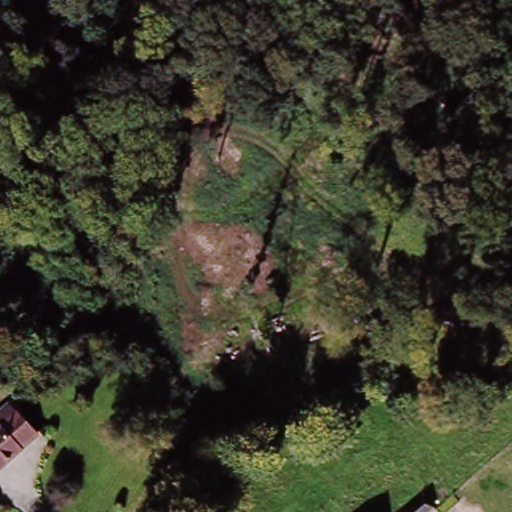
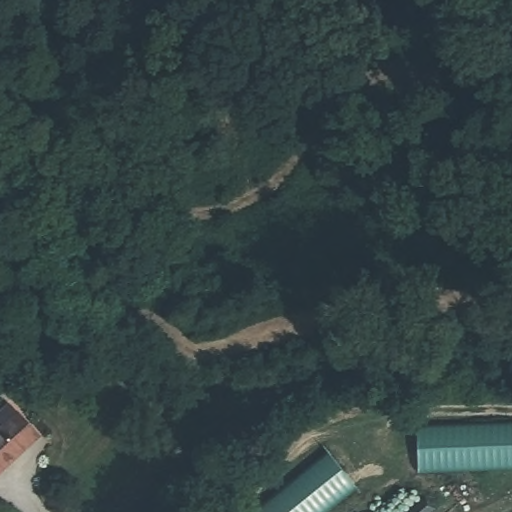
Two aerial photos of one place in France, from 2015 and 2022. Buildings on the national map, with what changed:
unchanged [(13,420),(34,439),(21,451),(0,474),(0,435),(2,432),(13,420)]
new [(512,425),(512,471),(416,473),(415,429),(512,425)]
new [(327,512),(255,512),(328,455),(356,489),(327,512)]
demolished [(438,494),(447,489),(452,495),(443,500),(438,494)]
unchanged [(425,512),(409,512),(419,503),(425,512)]

